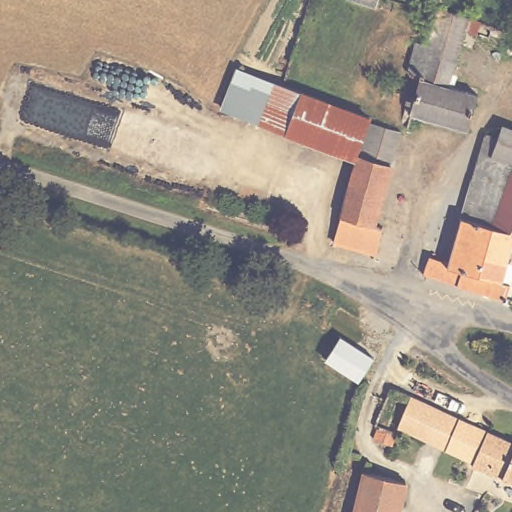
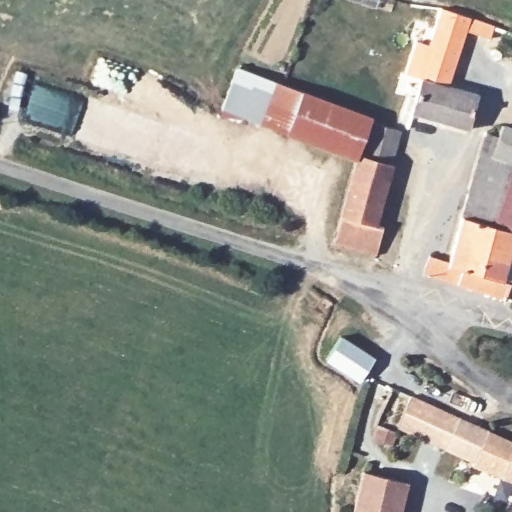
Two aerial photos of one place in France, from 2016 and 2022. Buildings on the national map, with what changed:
unchanged [(505,30),(495,27),(494,31),(465,24),(448,78),(479,87),(468,121),(412,107),(408,119),(402,116),(410,92),(413,93),(420,74),(411,67),(410,63),(410,58),(412,54),(416,51),(420,51),(427,53),(441,7),(506,25),(505,30)]
unchanged [(236,59),(371,109),(355,155),(218,104),(236,59)]
unchanged [(336,234),(360,151),(363,152),(372,116),(402,124),(378,220),(404,228),(395,259),(370,252),(372,244),(336,234)]
unchanged [(502,292),(420,267),(426,248),(447,254),(480,146),(485,129),(495,132),(500,119),(512,123),(512,237),(501,272),(509,275),(502,292)]
unchanged [(335,369),(350,344),(380,362),(363,383),(335,369)]
unchanged [(512,434),(512,478),(510,482),(480,468),(481,465),(472,461),(474,457),(400,422),(392,437),(371,429),(377,417),(375,416),(393,379),(411,387),(428,395),(512,434)]
unchanged [(400,476),(393,512),(347,512),(357,466),(400,476)]

